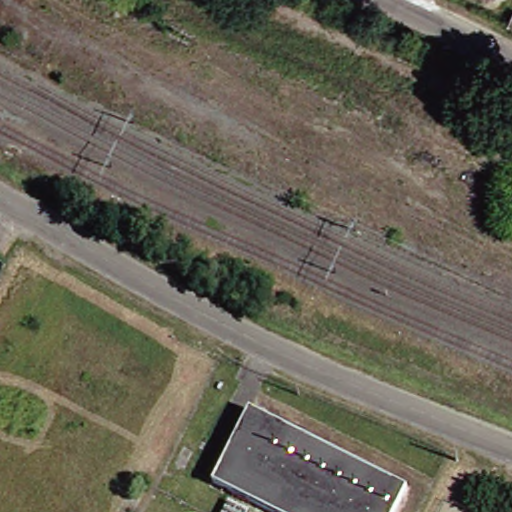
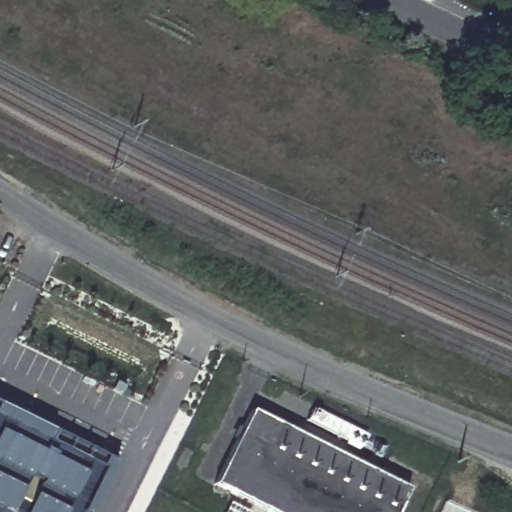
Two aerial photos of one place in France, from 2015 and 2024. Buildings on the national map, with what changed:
unchanged [(510,25),(512,21),(512,26),(510,25)]
new [(0,512),(0,406),(115,465),(91,512),(0,512)]
unchanged [(396,512),(260,512),(211,487),(248,413),(405,493),(396,512)]

